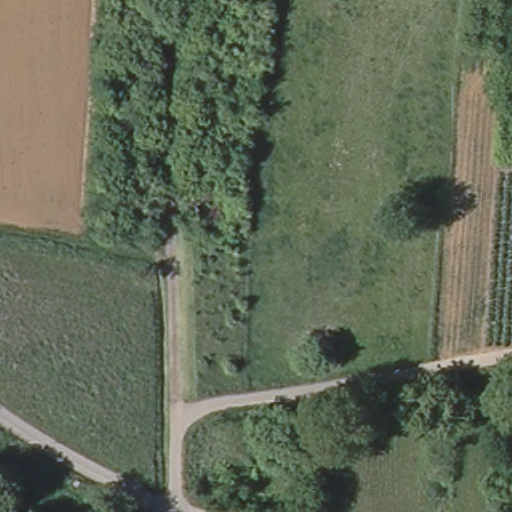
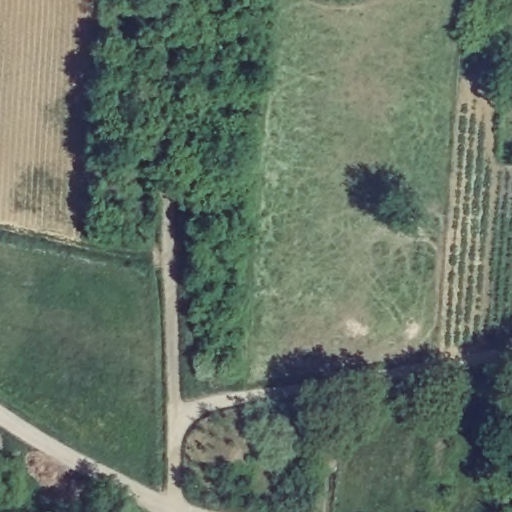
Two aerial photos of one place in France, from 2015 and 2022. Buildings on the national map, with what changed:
unchanged [(340,443),(334,478),(289,470),(292,438),(340,443)]

